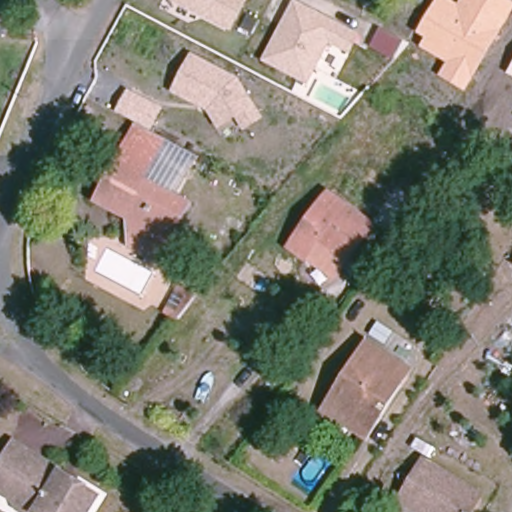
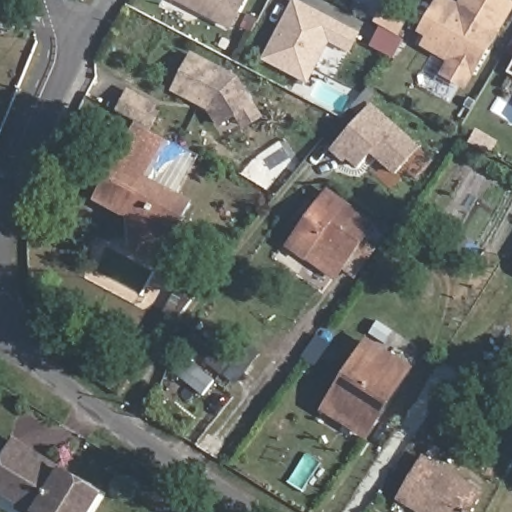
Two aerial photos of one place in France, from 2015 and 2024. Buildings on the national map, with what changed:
unchanged [(171,0),(249,0),(232,32),(171,0)]
unchanged [(329,43),(309,85),(262,60),(294,0),(295,0),(360,34),(351,54),(329,43)]
unchanged [(440,76),(448,63),(421,46),(426,37),(418,33),(437,0),(451,0),(459,4),(462,0),(509,0),(512,2),(512,15),(467,91),(440,76)]
new [(382,31),(404,42),(395,60),(373,49),(382,31)]
unchanged [(237,117),(219,129),(207,110),(172,92),(192,52),(239,77),(264,118),(244,130),(237,117)]
unchanged [(509,73),(512,68),(512,76),(509,73)]
unchanged [(116,112),(128,89),(164,107),(152,130),(116,112)]
new [(421,147),(394,175),(372,154),(359,168),(349,159),(344,162),(332,150),(373,103),(421,147)]
unchanged [(144,130),(199,154),(177,195),(174,200),(160,193),(164,186),(128,166),(144,130)]
unchanged [(174,200),(177,195),(178,196),(191,203),(170,242),(177,246),(168,263),(130,244),(129,219),(96,202),(110,175),(120,180),(127,167),(128,166),(164,186),(160,193),(174,200)]
demolished [(416,190),(392,226),(378,215),(402,180),(416,190)]
unchanged [(329,192),(374,225),(334,280),(289,247),(329,192)]
unchanged [(178,321),(164,312),(180,284),(199,294),(178,321)]
unchanged [(369,344),(409,370),(366,437),(325,411),(369,344)]
unchanged [(29,453),(99,496),(90,512),(23,512),(19,509),(18,501),(0,491),(0,467),(1,465),(14,443),(29,453)]
unchanged [(402,500),(425,461),(481,494),(470,512),(422,512),(402,500)]

